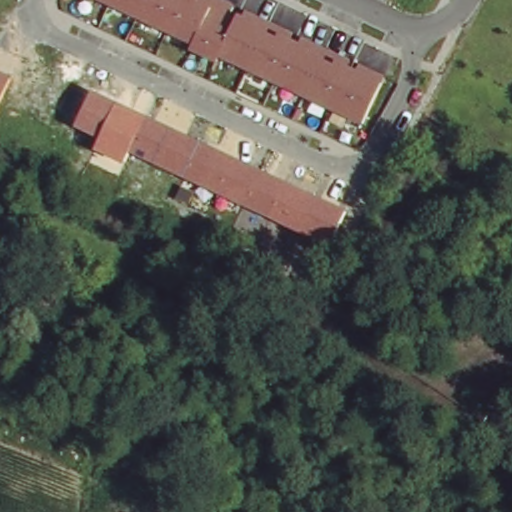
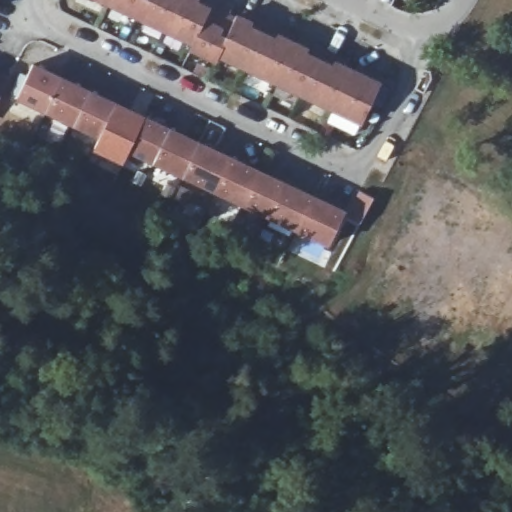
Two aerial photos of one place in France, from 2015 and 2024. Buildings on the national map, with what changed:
unchanged [(231,8),(254,17),(256,14),(282,25),(280,31),(309,45),(311,40),(339,52),(337,57),(382,78),(362,124),(220,55),(217,61),(189,49),(192,44),(99,0),(228,0),(233,2),(231,8)]
new [(74,128),(19,99),(35,66),(91,91),(74,128)]
unchanged [(0,95),(0,69),(10,73),(0,95)]
unchanged [(91,91),(347,210),(330,247),(130,156),(125,165),(95,151),(98,141),(74,128),(91,91)]

